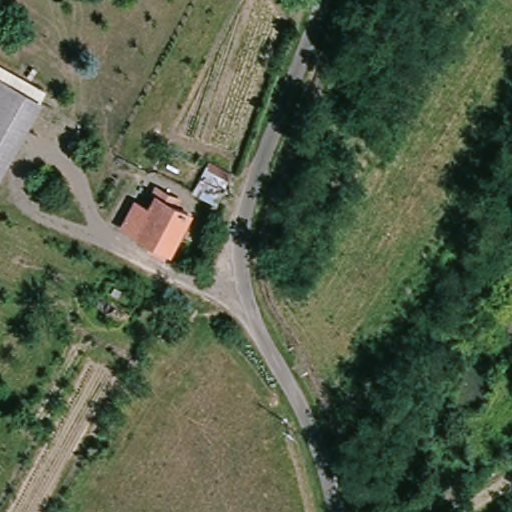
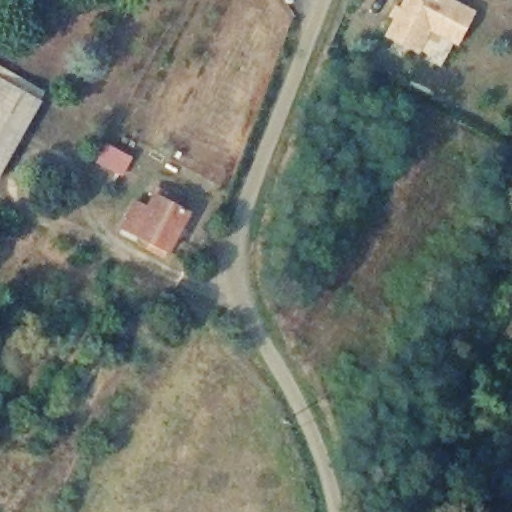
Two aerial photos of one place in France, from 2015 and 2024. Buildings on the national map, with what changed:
new [(384,36),(402,0),(456,0),(475,10),(458,45),(429,30),(418,54),(384,36)]
unchanged [(0,160),(0,81),(34,100),(0,160)]
unchanged [(145,237),(119,222),(134,195),(151,206),(166,178),(184,189),(171,212),(192,226),(174,254),(145,237)]

